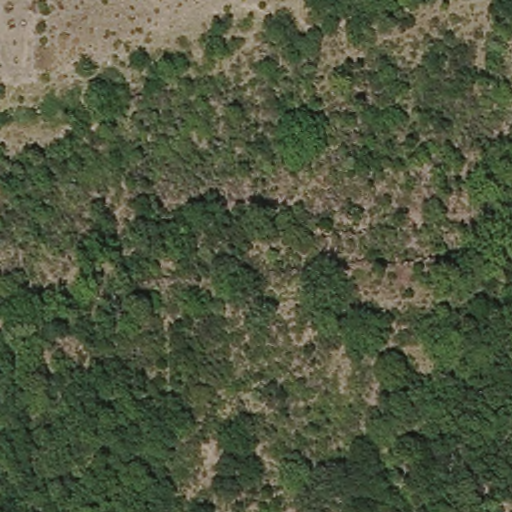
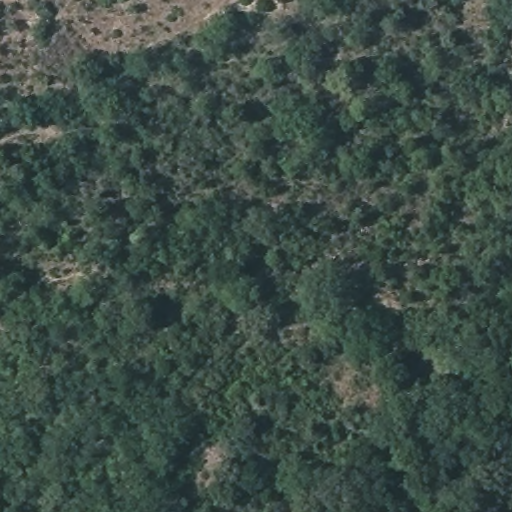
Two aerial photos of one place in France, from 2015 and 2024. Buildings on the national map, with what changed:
unchanged [(224,449),(217,463),(198,457),(207,442),(224,449)]

